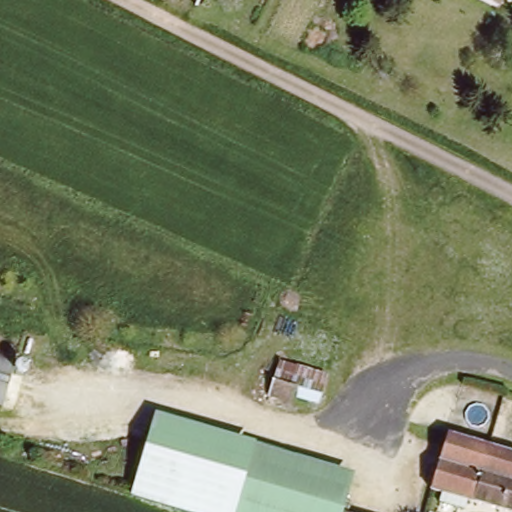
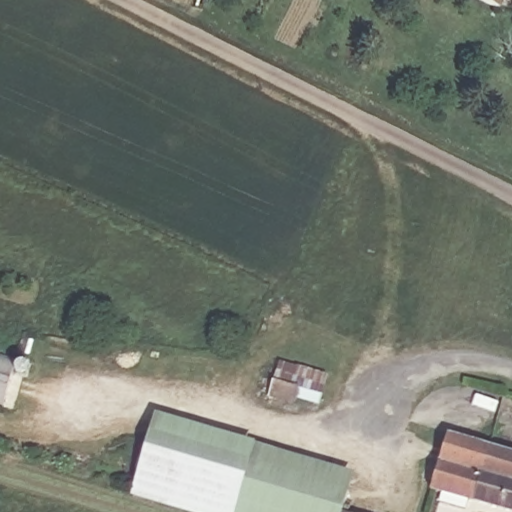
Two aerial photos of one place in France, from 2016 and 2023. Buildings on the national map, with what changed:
unchanged [(498,0),(502,0),(502,2),(498,0)]
unchanged [(29,377),(14,372),(4,405),(0,403),(0,353),(19,359),(33,363),(29,377)]
unchanged [(324,394),(299,387),(296,393),(273,387),(278,372),(301,380),(326,387),(324,394)]
unchanged [(130,492),(154,412),(254,442),(233,512),(197,512),(131,493),(130,492)]
unchanged [(472,496),(469,505),(444,497),(447,488),(434,485),(451,431),(512,449),(512,499),(509,507),(472,496)]
unchanged [(353,471),(340,512),(233,512),(254,442),(353,471)]
unchanged [(512,499),(512,508),(509,507),(512,499)]

